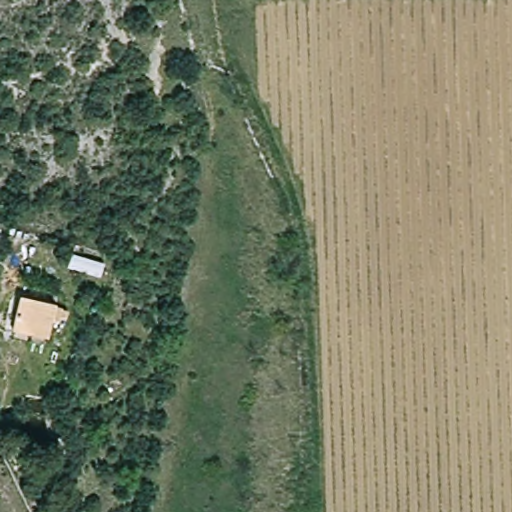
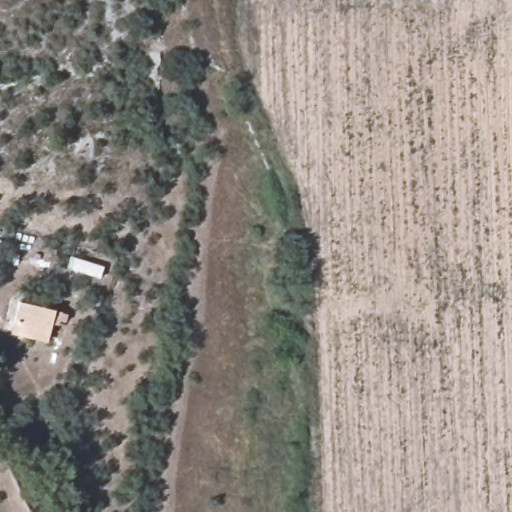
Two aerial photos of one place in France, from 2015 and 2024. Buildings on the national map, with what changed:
unchanged [(3,334),(6,325),(15,301),(53,314),(45,338),(42,347),(3,334)]

